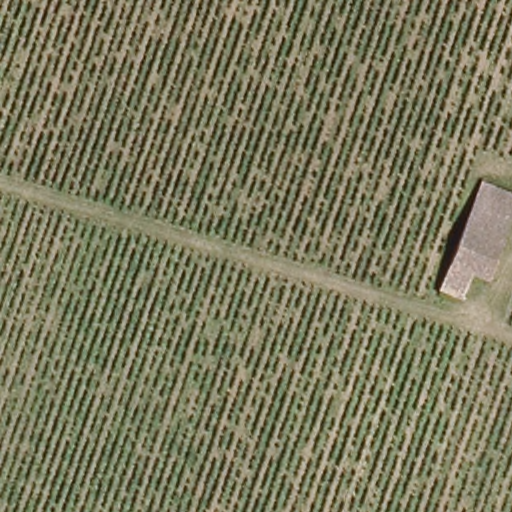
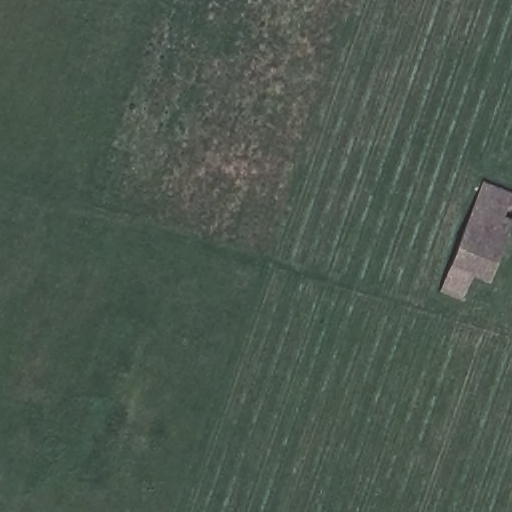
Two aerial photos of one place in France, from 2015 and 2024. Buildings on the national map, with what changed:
unchanged [(470,264),(456,304),(435,299),(478,175),(512,188),(512,208),(491,269),(470,264)]

